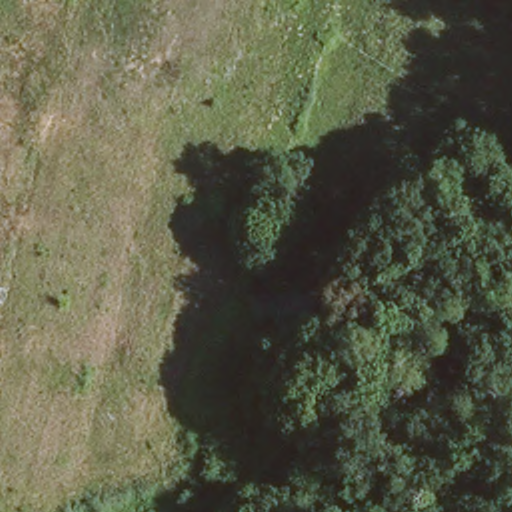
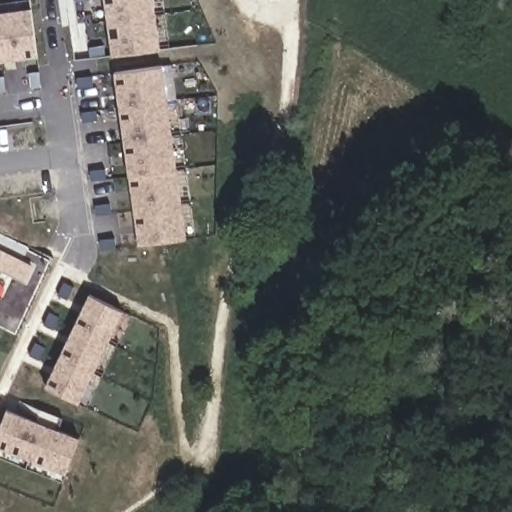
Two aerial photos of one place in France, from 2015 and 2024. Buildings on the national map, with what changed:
new [(114,54),(107,0),(154,0),(159,48),(114,54)]
new [(39,56),(0,61),(0,11),(31,6),(39,56)]
new [(164,67),(189,236),(142,242),(117,70),(164,67)]
new [(124,309),(80,401),(47,384),(93,295),(124,309)]
new [(68,470),(0,447),(0,434),(8,410),(80,436),(68,470)]

